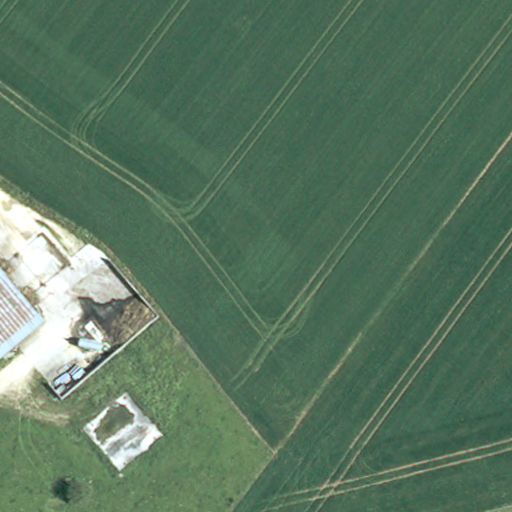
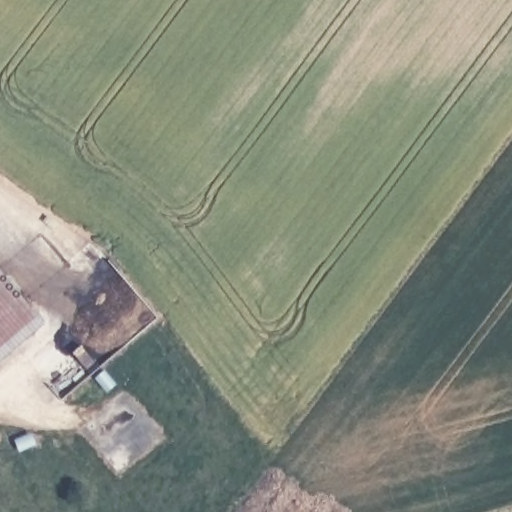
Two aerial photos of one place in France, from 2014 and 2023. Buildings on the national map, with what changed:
unchanged [(0,369),(0,266),(51,327),(0,369)]

